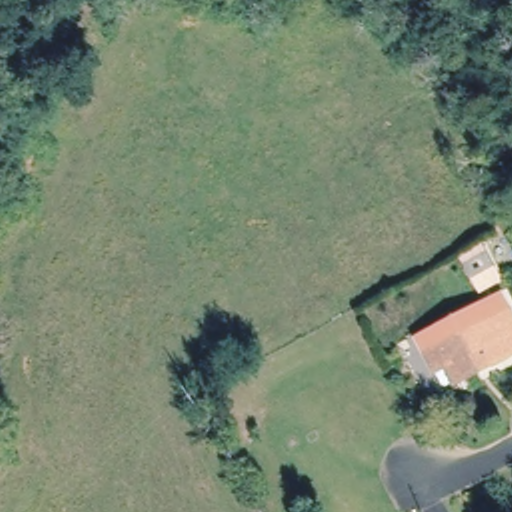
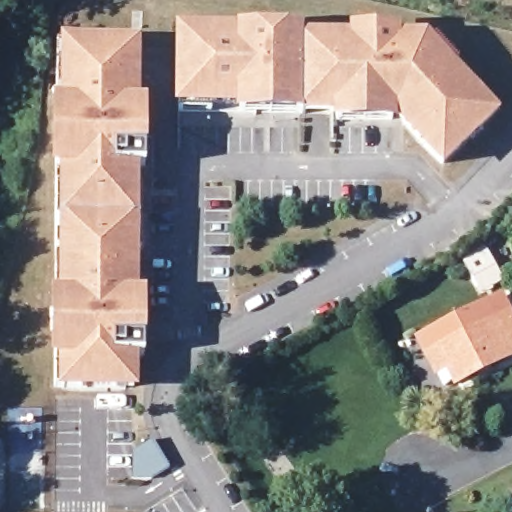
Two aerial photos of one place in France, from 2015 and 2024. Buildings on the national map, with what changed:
new [(423,141),(396,113),(393,113),(394,120),(339,120),(339,113),(242,111),(242,104),(214,104),(213,111),(181,111),(182,104),(182,32),(275,33),(275,41),(305,41),(356,41),(356,34),(383,34),(399,34),(399,41),(427,41),(432,46),(437,41),(459,65),(454,70),(474,91),(479,86),(502,109),(496,114),(450,159),(445,164),(423,141)]
new [(127,387),(64,386),(56,386),(57,266),(65,266),(65,249),(57,248),(58,184),(66,184),(66,166),(58,166),(59,46),(67,46),(138,46),(137,149),(147,149),(147,166),(137,166),(137,184),(144,184),(144,249),(136,249),(136,267),(144,267),(143,339),(146,339),(146,356),(136,356),(135,387),(127,387)]
unchanged [(413,336),(502,290),(508,313),(423,356),(413,336)]
unchanged [(423,356),(508,313),(512,320),(512,348),(511,348),(512,351),(512,352),(442,390),(423,356)]
new [(135,451),(154,439),(171,466),(152,478),(134,477),(135,451)]

